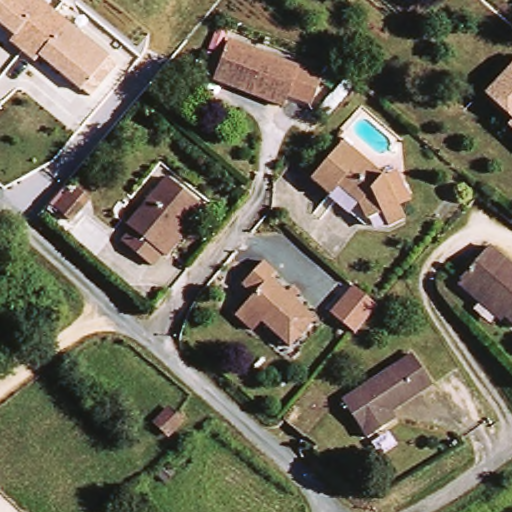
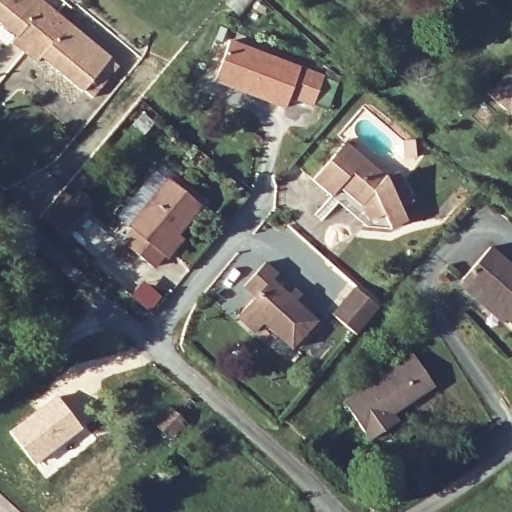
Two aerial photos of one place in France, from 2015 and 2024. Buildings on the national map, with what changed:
unchanged [(43,63),(15,42),(18,37),(0,21),(0,0),(48,0),(113,53),(83,89),(48,58),(43,63)]
unchanged [(285,103),(217,79),(229,44),(298,68),(285,103)]
unchanged [(512,66),(512,115),(487,94),(512,66)]
unchanged [(318,105),(288,95),(298,68),(328,78),(318,105)]
unchanged [(344,140),(377,168),(391,162),(406,191),(396,197),(402,213),(384,221),(377,206),(361,213),(356,200),(351,200),(339,185),(329,196),(309,180),(344,140)]
unchanged [(162,251),(150,266),(119,238),(127,228),(123,224),(165,174),(198,202),(175,229),(182,235),(165,255),(162,251)]
unchanged [(91,208),(78,224),(66,213),(80,198),(91,208)]
unchanged [(512,319),(463,279),(489,248),(512,267),(512,319)]
unchanged [(262,262),(274,273),(268,281),(313,319),(288,348),(259,324),(251,333),(234,318),(251,297),(240,287),(262,262)]
unchanged [(354,285),(382,306),(361,334),(334,312),(354,285)]
unchanged [(412,351),(431,379),(379,413),(384,421),(366,434),(343,398),(412,351)]
new [(58,393),(83,427),(34,464),(8,430),(58,393)]
unchanged [(171,410),(183,422),(169,435),(158,424),(171,410)]
unchanged [(165,461),(174,474),(165,482),(154,470),(165,461)]

